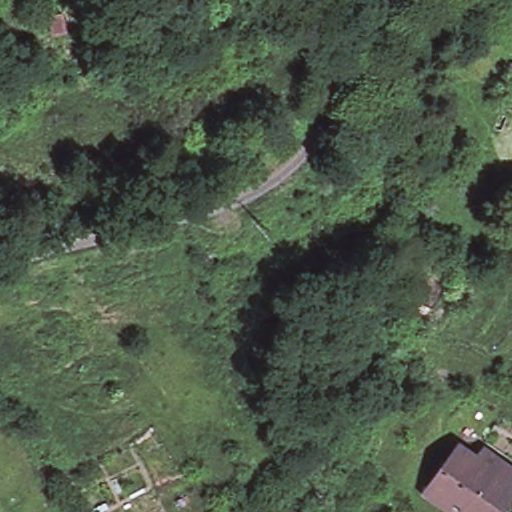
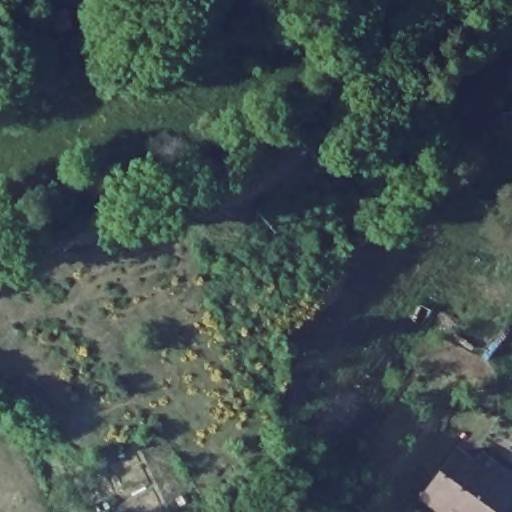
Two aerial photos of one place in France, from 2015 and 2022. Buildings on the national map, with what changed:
unchanged [(512,65),(512,87),(505,87),(507,64),(512,65)]
unchanged [(484,460),(512,480),(512,505),(507,512),(441,512),(427,502),(460,457),(477,470),(484,460)]

